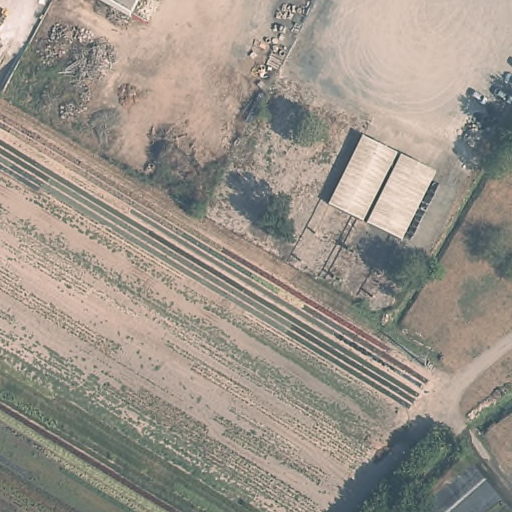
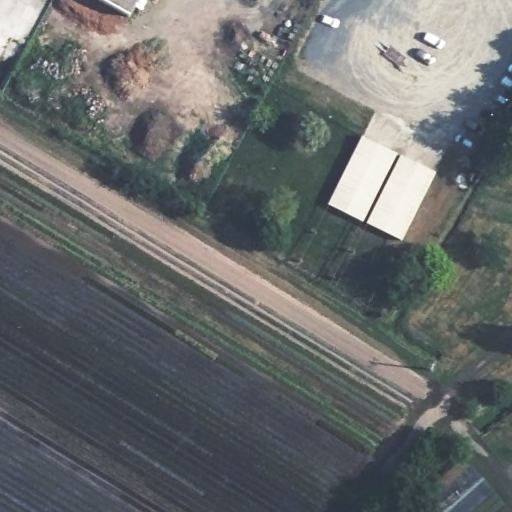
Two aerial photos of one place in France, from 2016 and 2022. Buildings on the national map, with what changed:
unchanged [(128,16),(99,0),(138,0),(128,16)]
unchanged [(325,208),(360,140),(393,157),(358,225),(325,208)]
unchanged [(431,177),(397,244),(362,227),(397,159),(431,177)]

